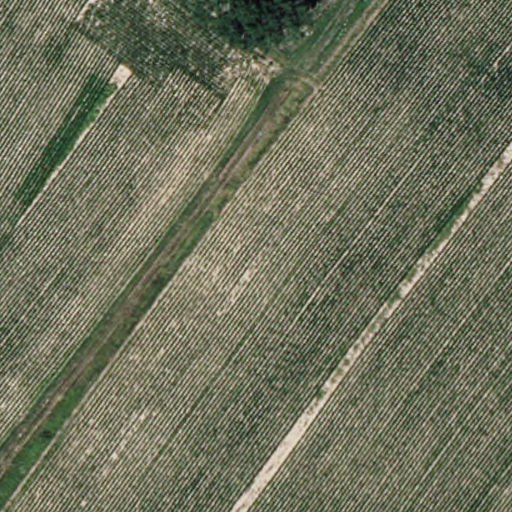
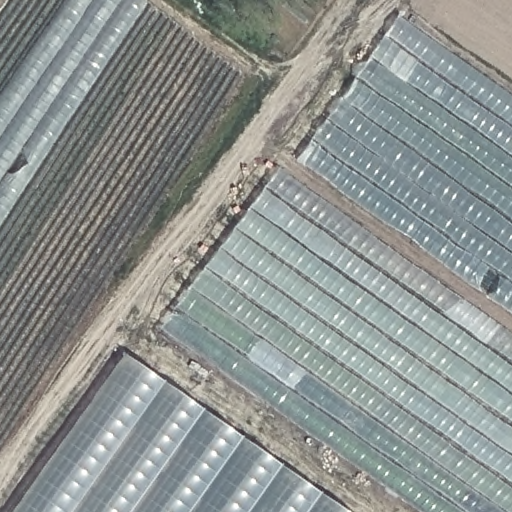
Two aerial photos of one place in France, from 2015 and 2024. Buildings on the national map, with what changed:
new [(0,229),(0,97),(64,0),(144,0),(147,3),(0,229)]
new [(398,15),(512,95),(512,314),(297,161),(398,15)]
new [(280,168),(512,333),(512,512),(421,512),(160,329),(280,168)]
new [(345,512),(12,512),(124,355),(345,512)]

